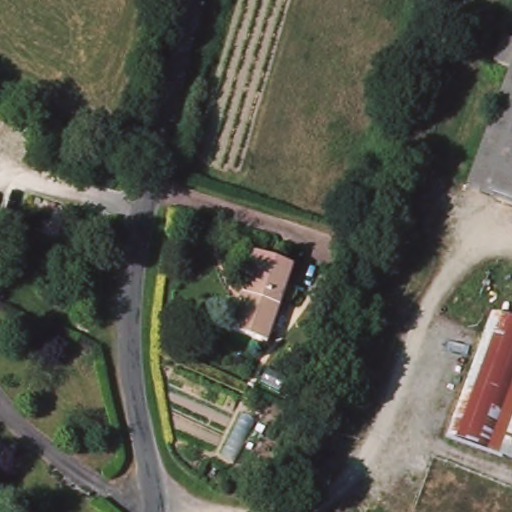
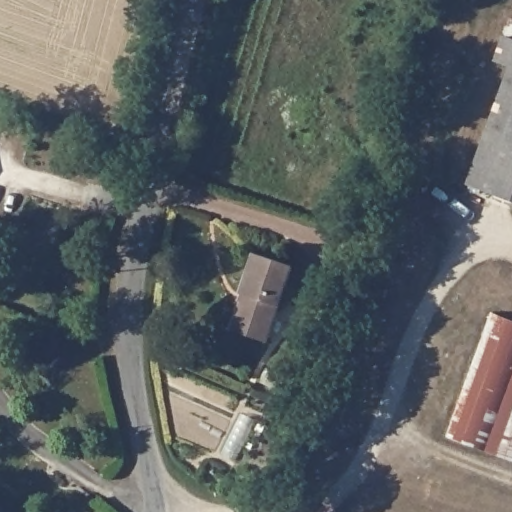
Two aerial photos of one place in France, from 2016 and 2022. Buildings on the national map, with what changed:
unchanged [(508,37),(512,38),(512,66),(500,62),(508,37)]
unchanged [(512,76),(512,199),(473,185),(512,76)]
unchanged [(272,342),(239,331),(250,296),(247,294),(261,254),(299,267),(272,342)]
unchanged [(502,313),(512,317),(512,457),(457,437),(502,313)]

